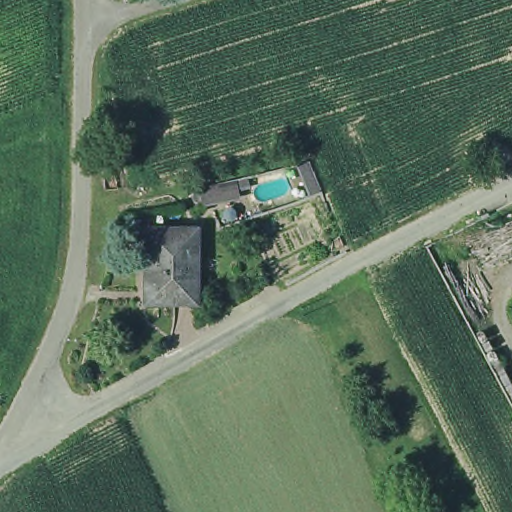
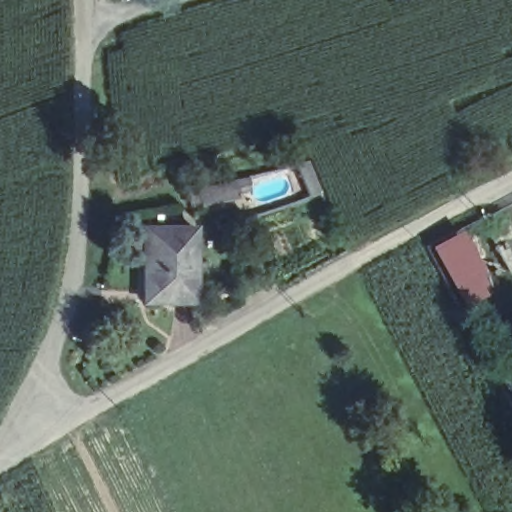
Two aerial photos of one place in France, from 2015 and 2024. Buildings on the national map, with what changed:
unchanged [(161,222),(160,234),(199,234),(197,307),(138,307),(139,224),(161,222)]
new [(465,232),(483,267),(490,297),(467,310),(435,249),(465,232)]

